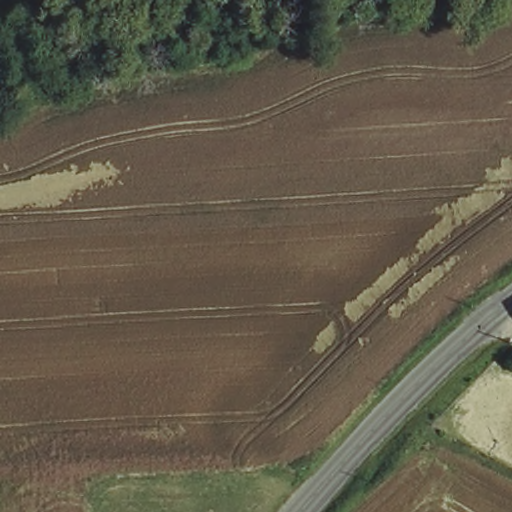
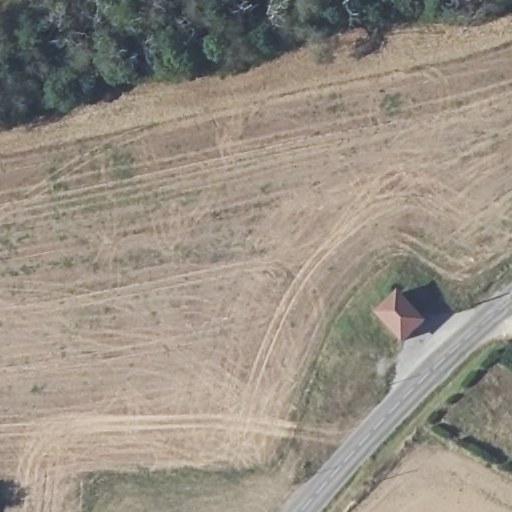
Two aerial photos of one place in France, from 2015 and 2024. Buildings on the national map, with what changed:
new [(426,321),(403,343),(375,314),(399,291),(426,321)]

